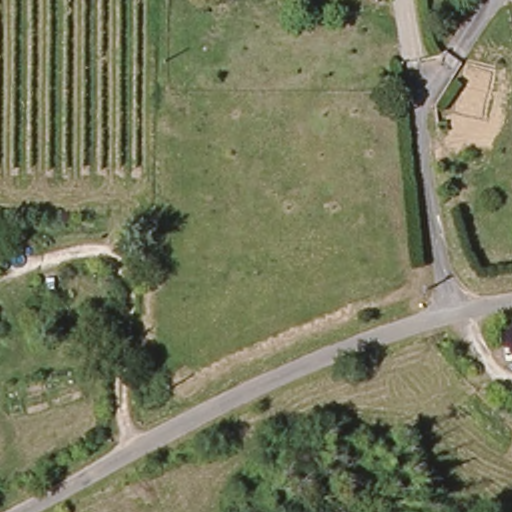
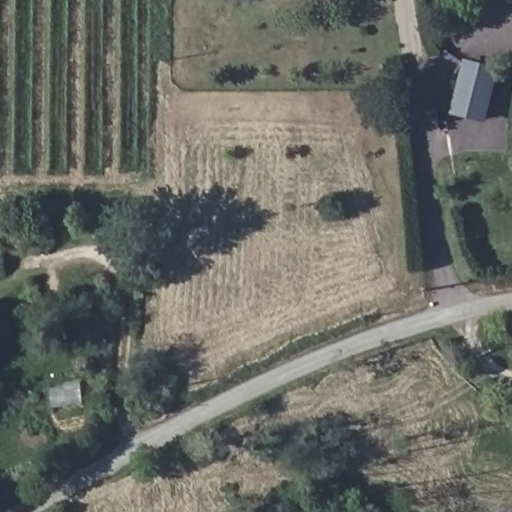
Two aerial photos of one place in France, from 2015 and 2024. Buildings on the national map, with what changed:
new [(485,122),(451,114),(466,60),(499,69),(485,122)]
unchanged [(449,126),(451,136),(440,137),(438,127),(449,126)]

